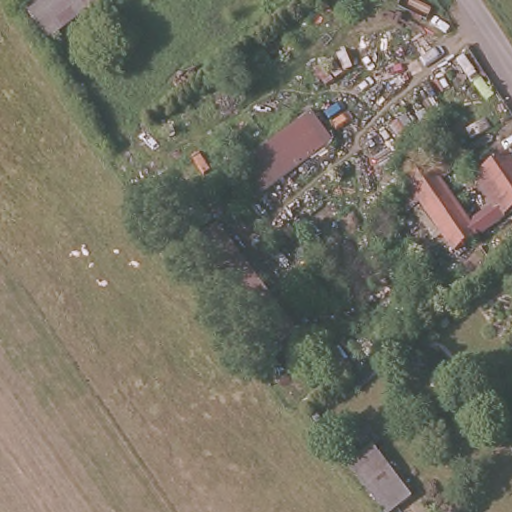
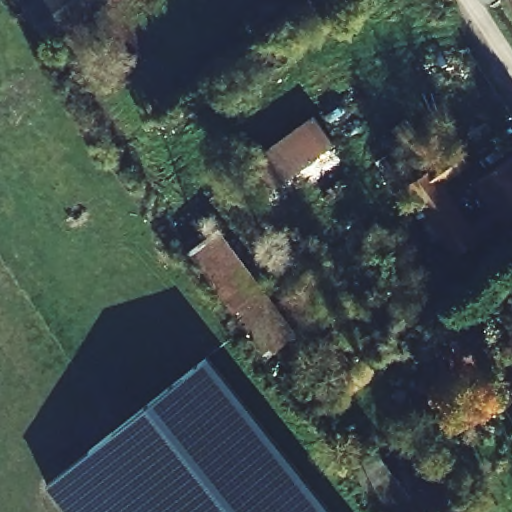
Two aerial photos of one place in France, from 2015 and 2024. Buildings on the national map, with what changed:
unchanged [(102,0),(50,40),(19,5),(26,0),(102,0)]
unchanged [(335,141),(257,200),(232,167),(314,108),(335,141)]
unchanged [(405,187),(455,149),(465,165),(442,182),(471,223),(495,205),(475,178),(511,153),(512,155),(512,217),(457,256),(405,187)]
unchanged [(218,228),(296,329),(262,354),(186,252),(218,228)]
new [(47,485),(209,356),(333,512),(69,512),(47,485)]
unchanged [(418,498),(400,512),(387,512),(347,460),(375,439),(418,498)]

